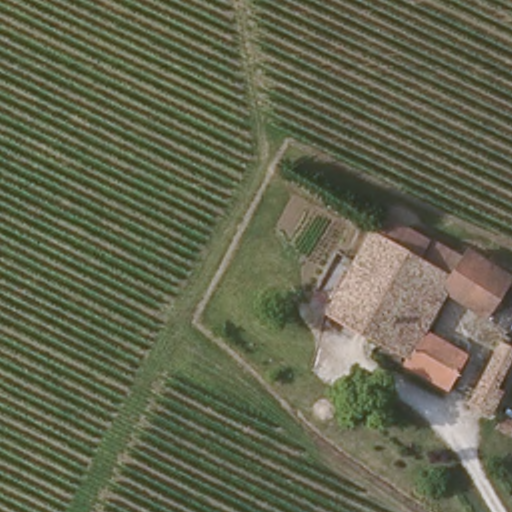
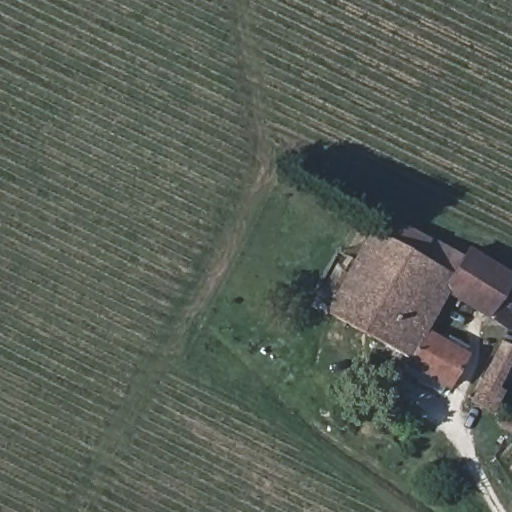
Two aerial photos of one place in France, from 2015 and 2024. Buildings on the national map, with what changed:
unchanged [(402,362),(406,354),(327,310),(385,214),(465,258),(470,249),(512,275),(512,327),(450,292),(437,314),(445,318),(436,336),(427,332),(420,344),(462,369),(451,389),(435,381),(427,376),(402,362)]
unchanged [(481,390),(485,383),(512,338),(512,372),(501,392),(496,399),(481,390)]

